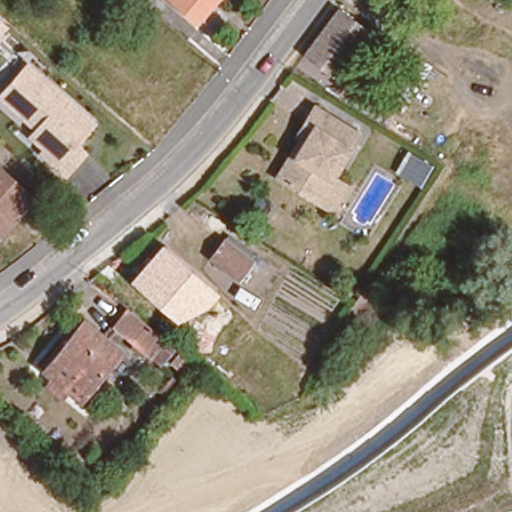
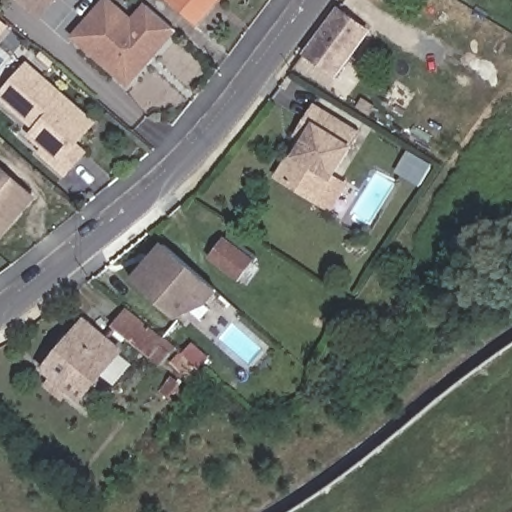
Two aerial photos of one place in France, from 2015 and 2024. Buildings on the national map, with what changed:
new [(38,21),(13,0),(57,0),(38,21)]
new [(130,88),(70,39),(102,0),(111,0),(132,17),(145,3),(177,31),(130,88)]
unchanged [(194,19),(173,0),(217,0),(207,12),(199,22),(194,19)]
unchanged [(367,32),(338,74),(308,51),(339,10),(367,32)]
unchanged [(0,36),(0,21),(9,27),(0,36)]
unchanged [(96,124),(76,147),(84,153),(64,176),(38,153),(41,148),(27,134),(33,127),(0,97),(0,95),(26,64),(96,124)]
unchanged [(358,133),(329,177),(332,179),(318,201),(285,180),(276,174),(302,136),(297,133),(306,120),(316,105),(358,133)]
unchanged [(0,235),(0,171),(32,199),(0,235)]
unchanged [(255,263),(243,281),(210,258),(223,240),(255,263)]
unchanged [(177,319),(131,279),(162,244),(219,292),(208,306),(177,319)]
unchanged [(149,363),(147,362),(109,329),(123,312),(163,347),(169,352),(164,358),(156,369),(149,363)]
unchanged [(45,390),(53,381),(46,375),(86,326),(120,356),(81,404),(71,395),(63,406),(45,390)]
unchanged [(189,380),(174,366),(183,355),(198,368),(189,380)]
unchanged [(173,393),(166,388),(176,376),(183,381),(173,393)]

